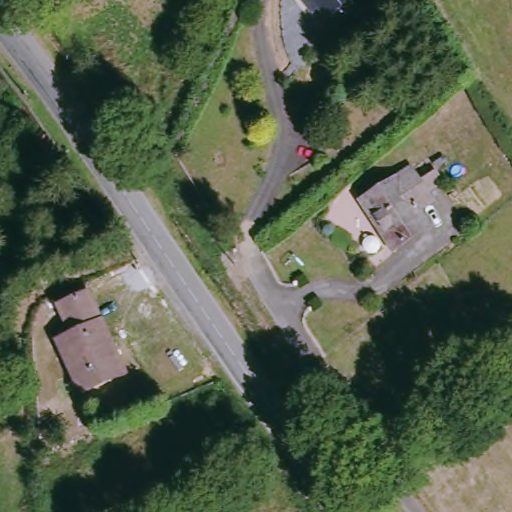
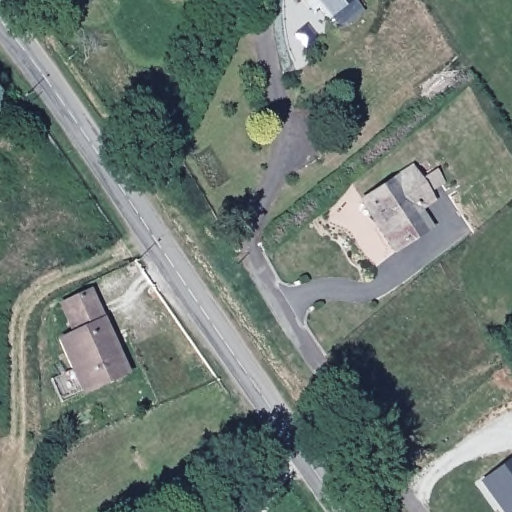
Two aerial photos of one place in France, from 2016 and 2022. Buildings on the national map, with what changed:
unchanged [(369,10),(353,21),(343,18),(340,13),(335,15),(327,4),(318,8),(311,0),(362,0),(369,10)]
unchanged [(415,174),(422,186),(438,176),(443,185),(428,195),(435,205),(421,215),(432,233),(396,256),(365,209),(415,174)]
unchanged [(123,378),(88,395),(60,333),(72,326),(64,307),(95,294),(120,347),(132,374),(123,378)]
new [(512,459),(512,512),(501,512),(480,484),(512,459)]

